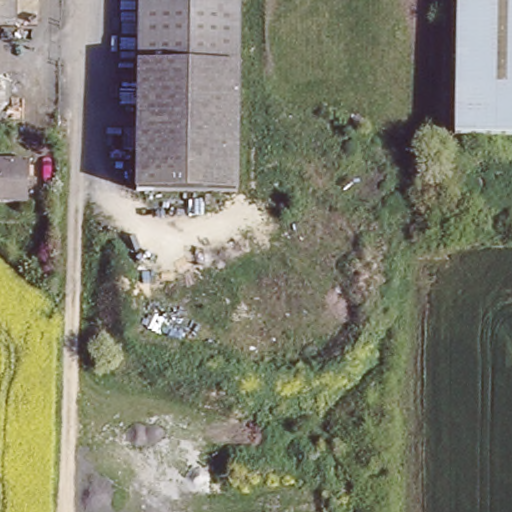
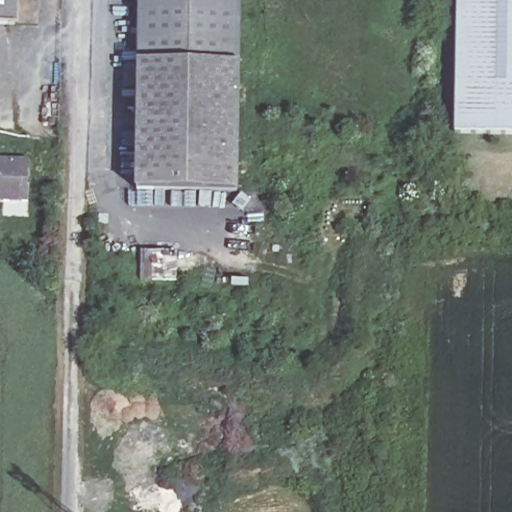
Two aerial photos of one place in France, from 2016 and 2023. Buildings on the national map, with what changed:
unchanged [(18,20),(0,19),(0,0),(18,0),(18,20)]
unchanged [(236,191),(139,189),(142,0),(239,0),(236,191)]
unchanged [(459,0),(512,0),(512,131),(457,129),(459,0)]
unchanged [(28,157),(28,200),(0,199),(0,157),(28,157)]

